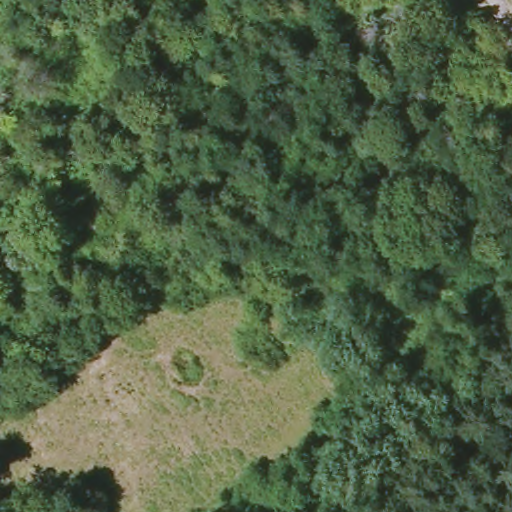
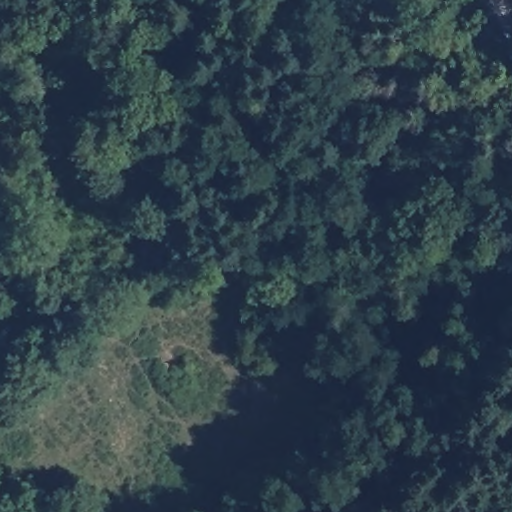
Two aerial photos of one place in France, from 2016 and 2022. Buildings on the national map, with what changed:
unchanged [(461,15),(482,5),(507,60),(484,69),(461,15)]

